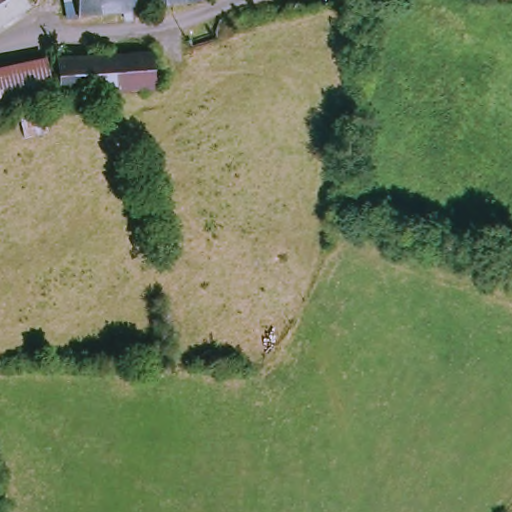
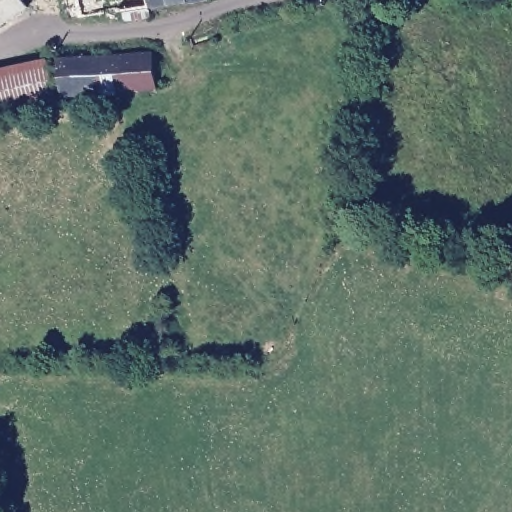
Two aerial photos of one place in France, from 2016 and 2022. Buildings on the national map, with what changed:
unchanged [(20,5),(7,14),(11,19),(0,26),(0,0),(16,0),(20,5)]
unchanged [(62,0),(144,0),(145,5),(146,15),(125,19),(123,9),(75,17),(65,17),(62,0)]
unchanged [(145,5),(144,0),(180,0),(145,5)]
unchanged [(53,95),(50,57),(145,50),(148,88),(53,95)]
unchanged [(45,97),(0,108),(0,67),(36,59),(45,97)]

